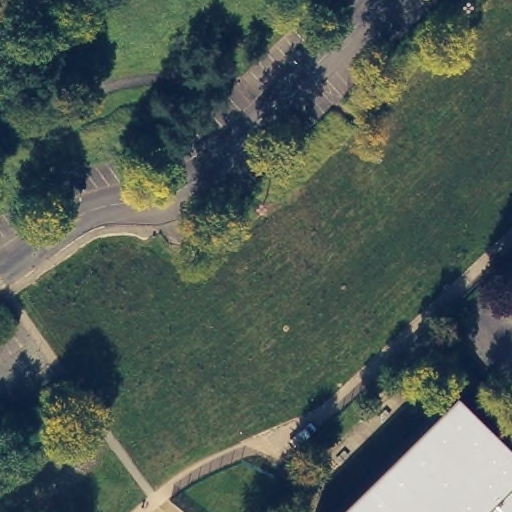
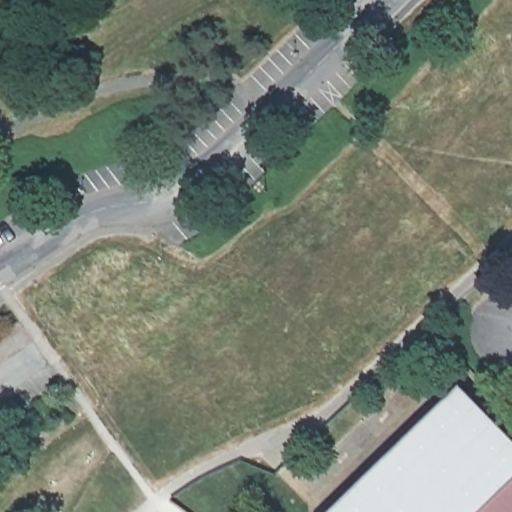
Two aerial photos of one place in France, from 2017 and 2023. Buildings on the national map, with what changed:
unchanged [(453,395),(460,388),(512,441),(512,512),(333,512),(453,395)]

